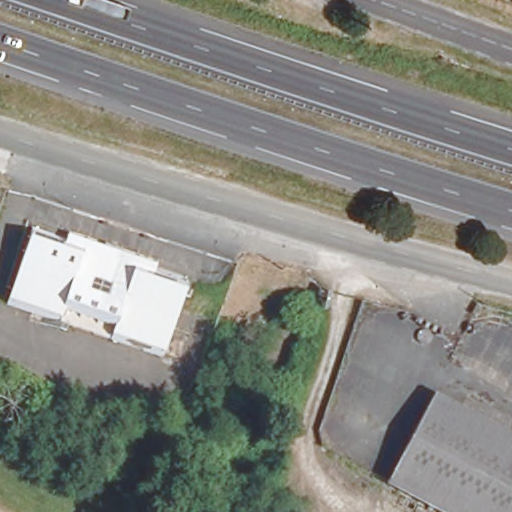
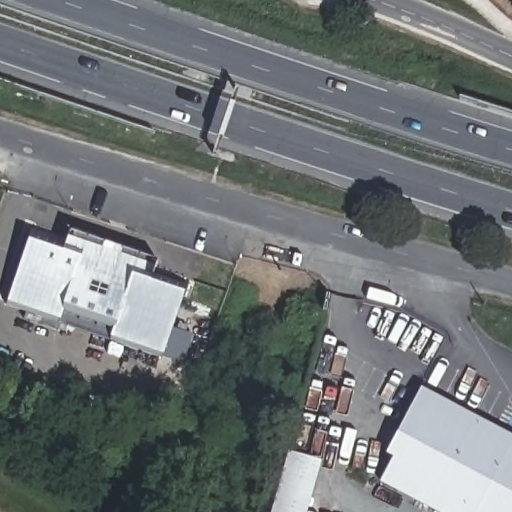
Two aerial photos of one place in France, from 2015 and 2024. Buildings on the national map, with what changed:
unchanged [(155,260),(187,271),(161,348),(7,296),(32,219),(67,230),(70,223),(105,234),(122,239),(157,252),(155,260)]
unchanged [(512,435),(512,512),(436,512),(386,486),(434,394),(512,435)]
new [(270,512),(286,451),(320,461),(306,512),(270,512)]

